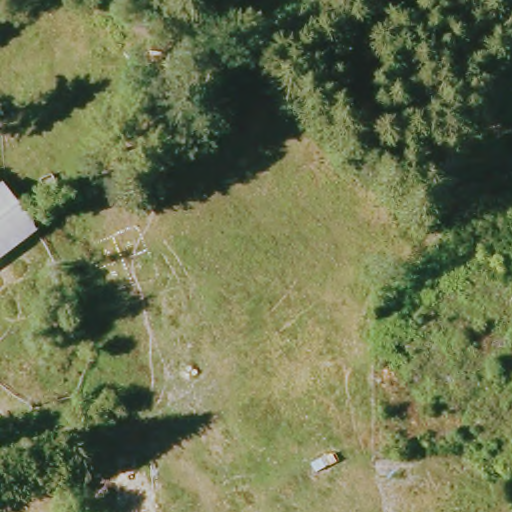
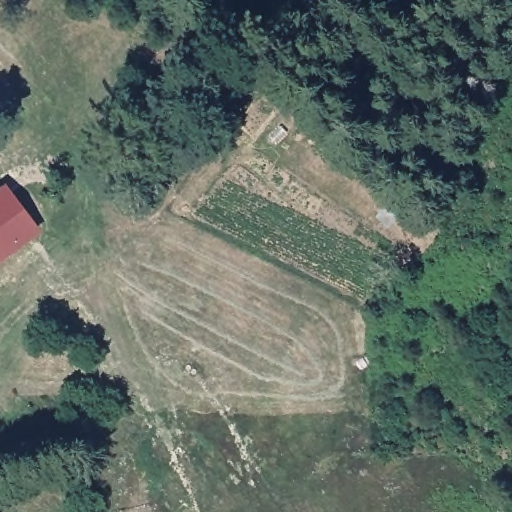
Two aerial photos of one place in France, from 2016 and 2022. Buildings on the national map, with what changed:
unchanged [(0,254),(0,196),(8,190),(36,229),(0,254)]

